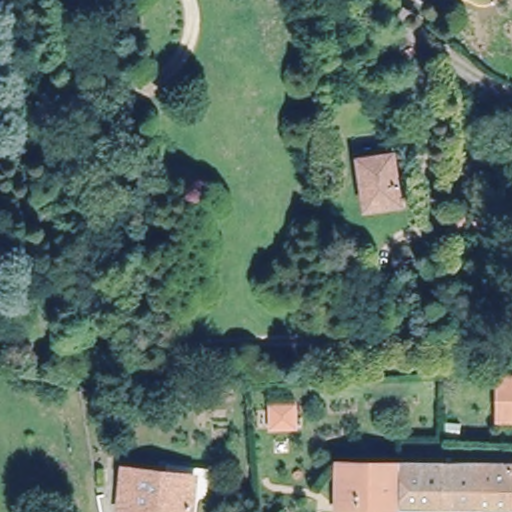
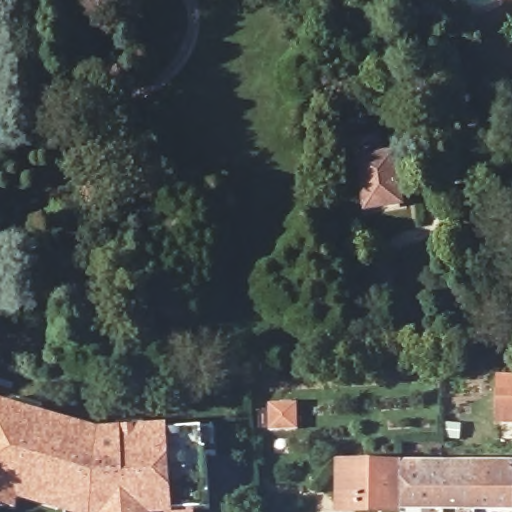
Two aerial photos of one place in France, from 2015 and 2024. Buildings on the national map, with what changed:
unchanged [(367,209),(360,161),(393,156),(394,161),(403,160),(407,182),(397,184),(400,204),(367,209)]
unchanged [(480,189),(483,234),(453,235),(449,190),(480,189)]
unchanged [(499,378),(512,378),(512,421),(498,421),(499,378)]
new [(100,431),(168,427),(169,432),(202,429),(210,508),(195,509),(195,512),(55,512),(20,501),(17,512),(0,506),(0,402),(100,431)]
unchanged [(297,429),(270,430),(270,405),(296,404),(297,429)]
unchanged [(390,512),(328,512),(330,469),(391,470),(390,512)]
unchanged [(512,471),(512,512),(504,512),(390,512),(391,470),(504,471),(512,471)]
demolished [(202,483),(191,482),(187,512),(114,512),(119,474),(187,481),(188,473),(203,474),(202,483)]

